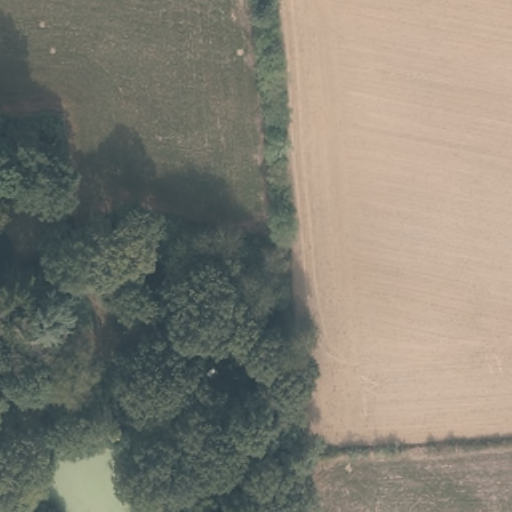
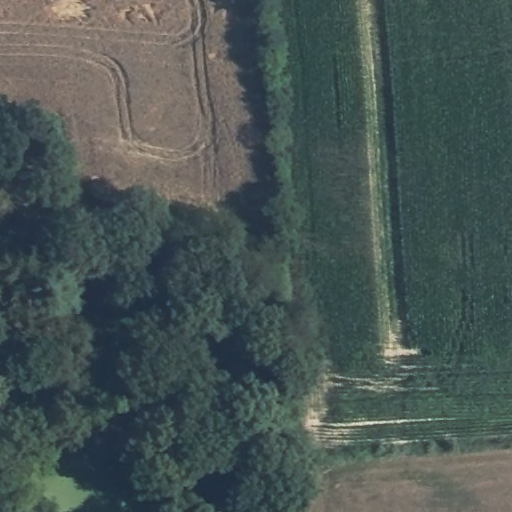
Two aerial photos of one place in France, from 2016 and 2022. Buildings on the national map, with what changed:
unchanged [(0,385),(0,383),(0,353),(26,346),(32,371),(0,385)]

